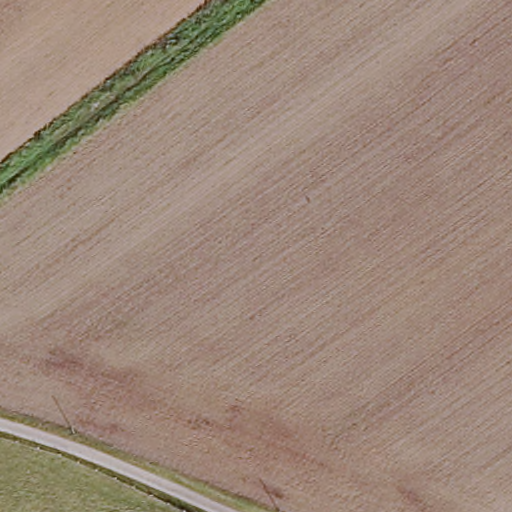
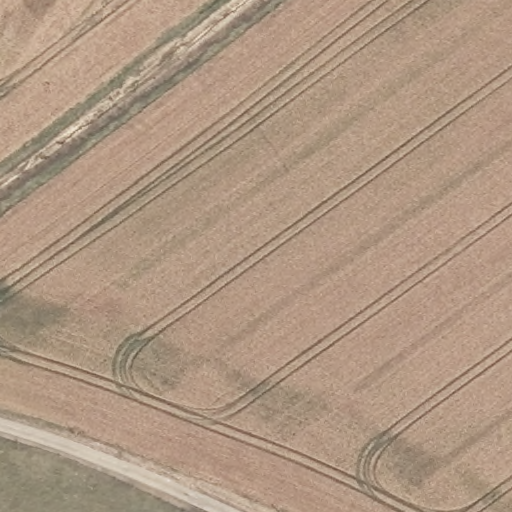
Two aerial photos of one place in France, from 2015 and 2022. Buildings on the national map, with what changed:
[]

